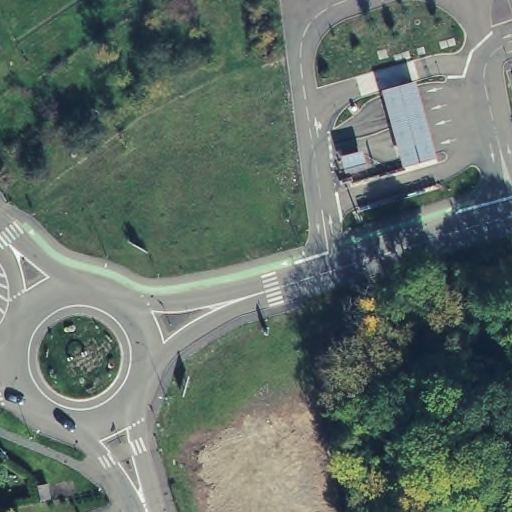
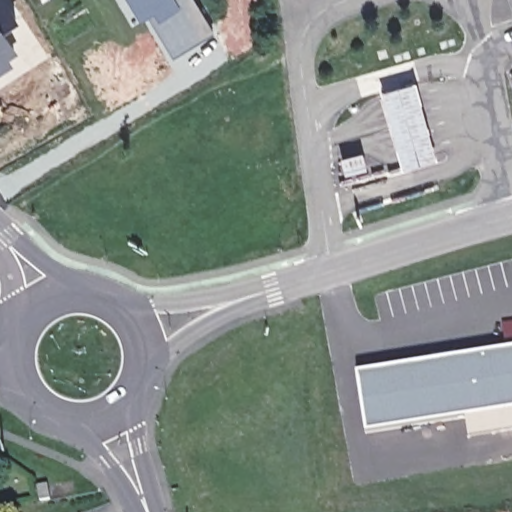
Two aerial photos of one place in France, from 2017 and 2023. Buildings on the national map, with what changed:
unchanged [(435,158),(403,167),(381,93),(415,85),(435,158)]
new [(365,432),(357,373),(512,350),(512,411),(365,432)]
unchanged [(45,486),(48,499),(38,501),(35,487),(45,486)]

